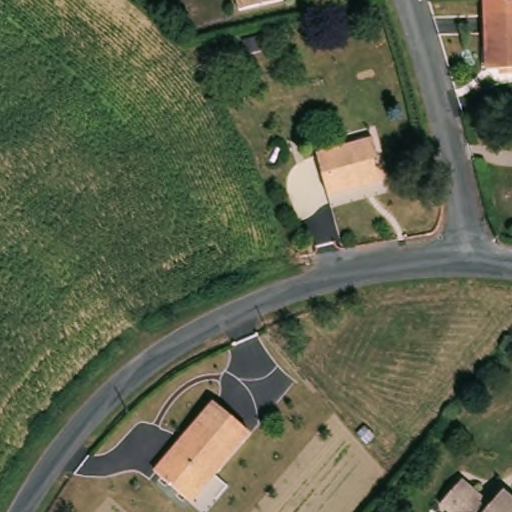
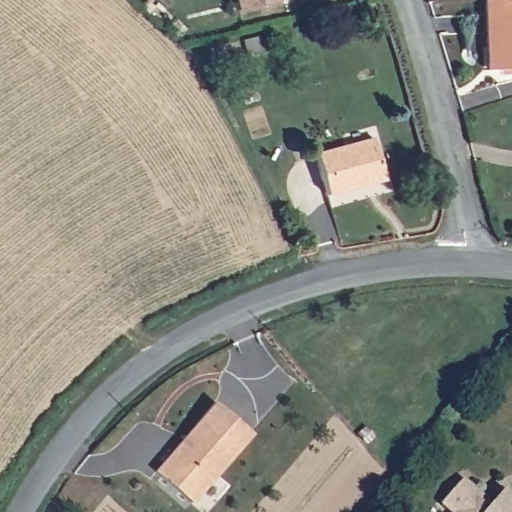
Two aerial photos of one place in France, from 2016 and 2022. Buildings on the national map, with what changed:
unchanged [(248,9),(245,0),(273,0),(248,9)]
unchanged [(484,74),(479,3),(501,1),(503,1),(512,0),(512,72),(484,74)]
unchanged [(385,176),(327,196),(317,161),(371,139),(385,176)]
unchanged [(217,401),(230,413),(252,433),(190,501),(168,481),(155,469),(217,401)]
unchanged [(449,512),(440,503),(462,479),(477,493),(490,506),(504,492),(512,500),(512,512),(449,512)]

